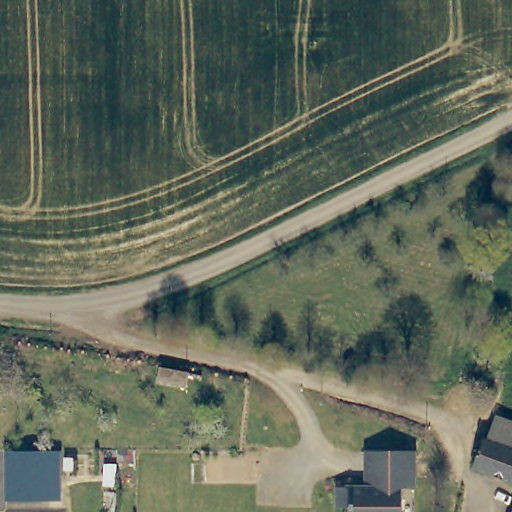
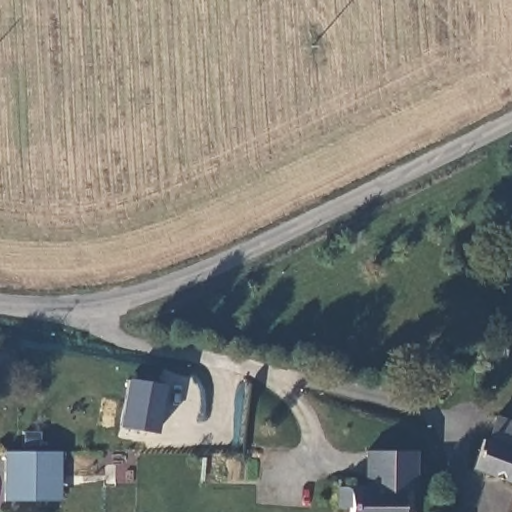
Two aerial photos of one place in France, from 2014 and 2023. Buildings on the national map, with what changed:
unchanged [(147,371),(150,357),(174,363),(172,376),(147,371)]
new [(154,434),(118,427),(127,378),(163,385),(154,434)]
unchanged [(477,465),(485,436),(486,437),(493,438),(498,422),(512,428),(512,479),(477,465)]
unchanged [(61,501),(4,501),(3,452),(61,451),(61,501)]
unchanged [(413,493),(402,493),(402,512),(337,512),(337,490),(364,491),(365,455),(374,455),(414,455),(413,493)]

